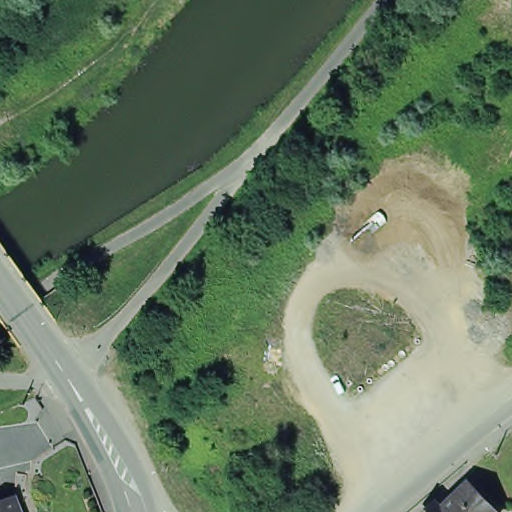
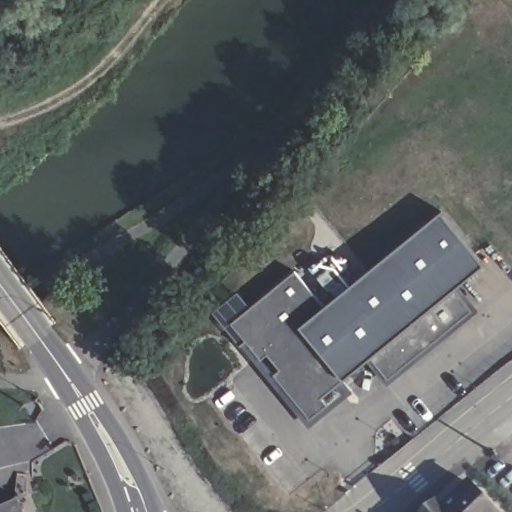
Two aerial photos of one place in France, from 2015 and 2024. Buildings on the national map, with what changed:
new [(461,284),(478,310),(388,383),(367,358),(344,379),(353,391),(310,425),(217,313),(242,293),(252,305),(295,270),(325,304),(338,293),(315,266),(333,252),(358,278),(442,211),(483,265),(461,284)]
unchanged [(446,511),(473,486),(498,512),(433,512),(440,505),(446,511)]
unchanged [(21,512),(0,512),(0,503),(15,497),(21,512)]

